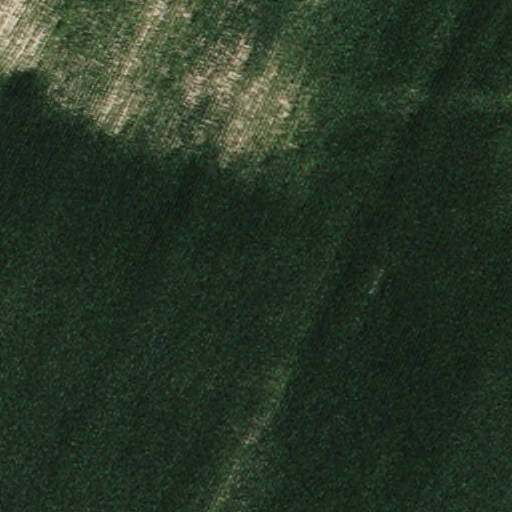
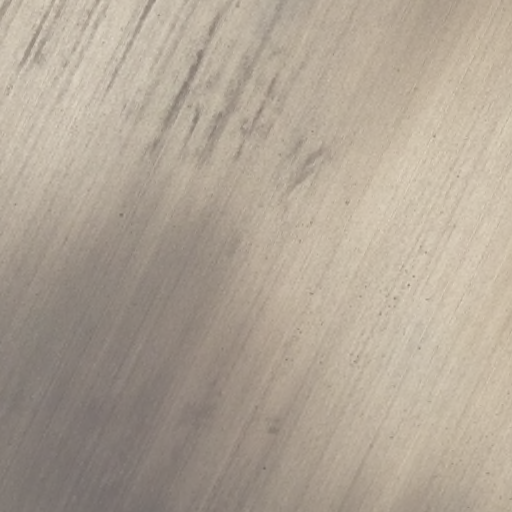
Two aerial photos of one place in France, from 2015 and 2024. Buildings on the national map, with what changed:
[]

